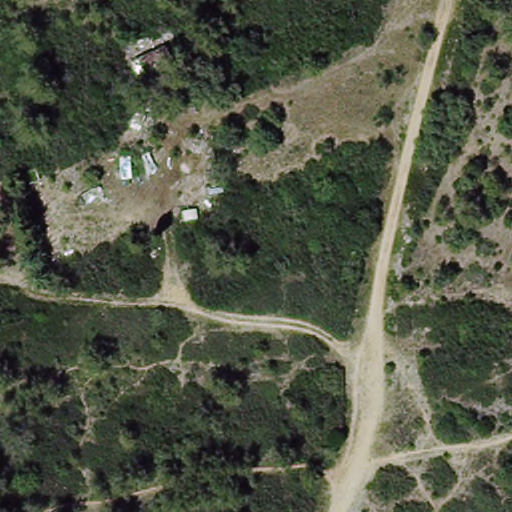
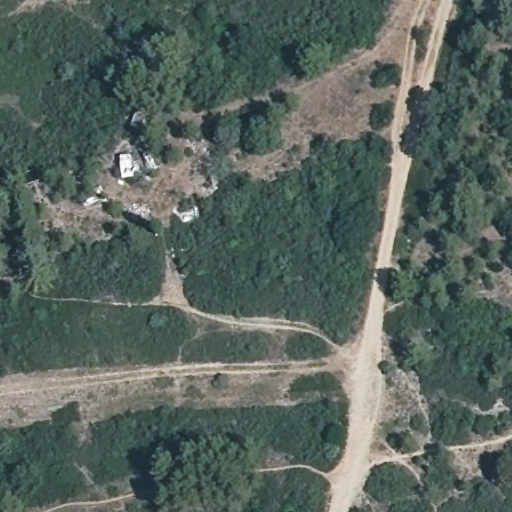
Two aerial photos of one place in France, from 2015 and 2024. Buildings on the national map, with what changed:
unchanged [(173,44),(180,66),(141,85),(132,61),(173,44)]

